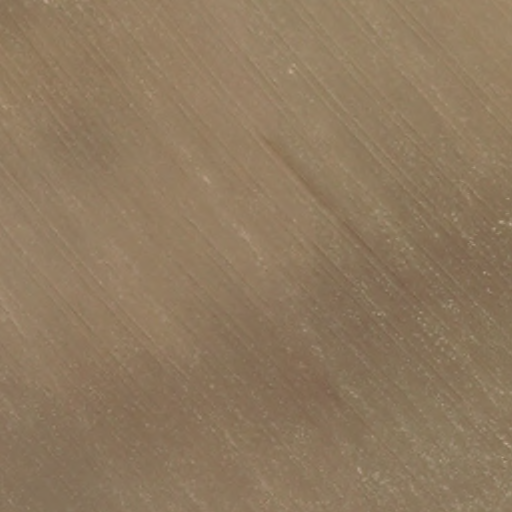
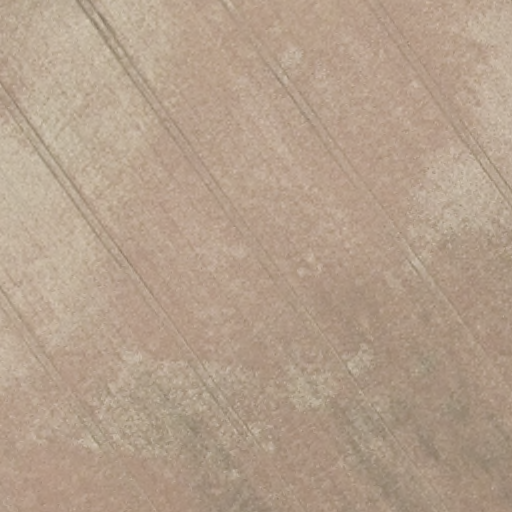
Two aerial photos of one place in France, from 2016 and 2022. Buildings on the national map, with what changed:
[]

